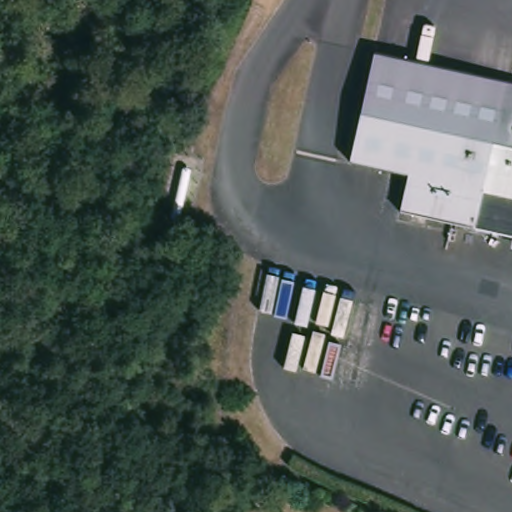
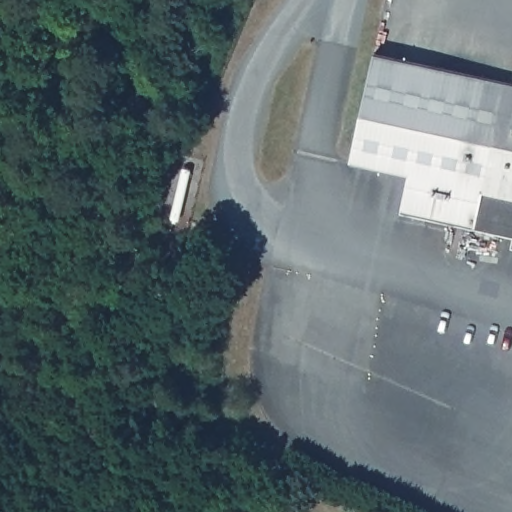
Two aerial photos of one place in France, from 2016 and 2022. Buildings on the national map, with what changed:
unchanged [(400,217),(410,176),(354,162),(378,56),(451,71),(445,151),(440,227),(400,217)]
unchanged [(508,83),(512,68),(512,243),(440,227),(445,151),(451,71),(508,83)]

